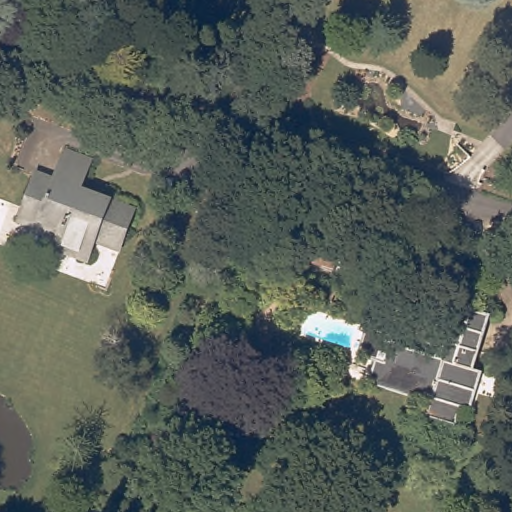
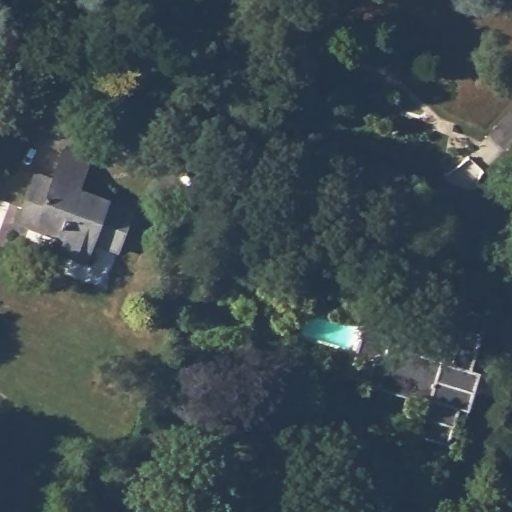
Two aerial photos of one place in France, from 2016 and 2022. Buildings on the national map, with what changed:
unchanged [(16,223),(35,174),(53,181),(64,151),(90,161),(79,190),(133,210),(118,251),(95,243),(87,263),(52,250),(57,238),(38,231),(16,223)]
unchanged [(365,324),(402,336),(400,344),(434,354),(450,301),(489,313),(472,366),(481,369),(469,407),(460,405),(449,441),(419,432),(431,396),(377,379),(367,376),(373,359),(356,353),(365,324)]

